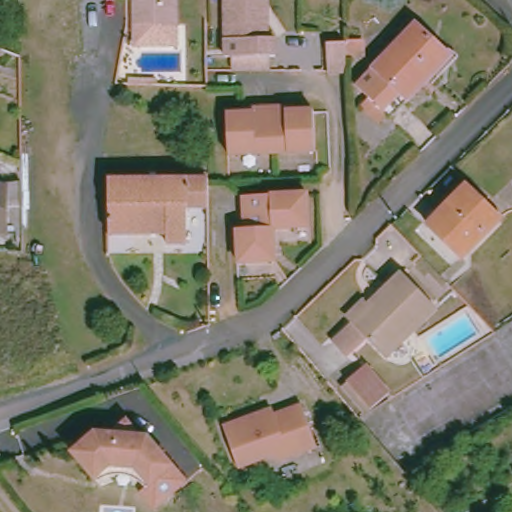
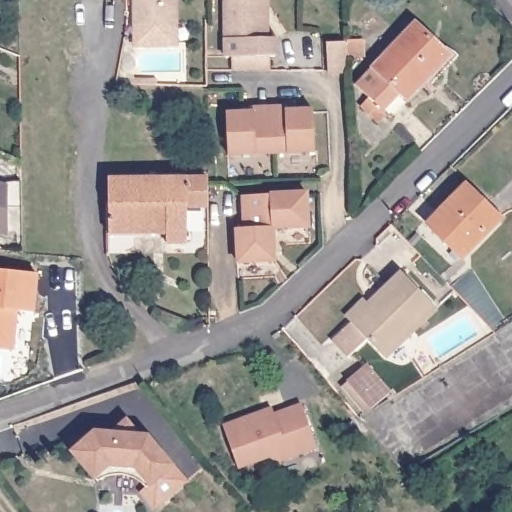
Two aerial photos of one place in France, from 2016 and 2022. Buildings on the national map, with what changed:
unchanged [(172,25),(172,44),(132,46),(130,0),(170,0),(172,25)]
unchanged [(267,63),(231,63),(230,52),(224,52),(223,0),(265,0),(265,1),(266,16),(266,34),(274,34),(274,52),(269,52),(270,62),(267,63)]
unchanged [(360,106),(367,98),(351,83),(407,20),(443,51),(386,116),(382,111),(374,119),(360,106)]
unchanged [(331,75),(327,75),(327,45),(345,44),(345,41),(362,40),(362,58),(345,58),(346,74),(331,75)]
unchanged [(130,76),(157,75),(157,81),(147,81),(130,82),(130,76)]
unchanged [(224,113),(242,113),(241,109),(252,108),(285,107),(295,106),(295,111),(312,110),(314,152),(225,156),(224,113)]
unchanged [(182,207),(181,239),(160,239),(160,229),(103,228),(103,175),(200,175),(202,175),(202,178),(202,207),(200,207),(182,207)]
unchanged [(495,221),(459,253),(427,218),(461,186),(495,221)]
unchanged [(307,228),(271,231),(273,262),(237,264),(234,231),(243,231),(241,199),(305,195),(307,228)]
unchanged [(0,239),(0,211),(3,213),(17,213),(18,241),(5,241),(0,239)]
new [(36,314),(21,312),(15,353),(0,351),(0,271),(40,276),(36,314)]
unchanged [(346,326),(345,325),(340,320),(360,302),(365,307),(401,275),(433,310),(377,360),(361,343),(341,361),(326,345),(346,326)]
unchanged [(359,412),(352,403),(337,383),(360,367),(375,389),(381,396),(359,412)]
unchanged [(279,463),(267,458),(235,469),(220,428),(260,413),(269,410),(270,417),(299,407),(314,450),(279,463)]
unchanged [(109,461),(87,468),(80,462),(58,438),(84,417),(136,423),(160,453),(174,469),(144,495),(130,476),(135,473),(117,462),(109,461)]

